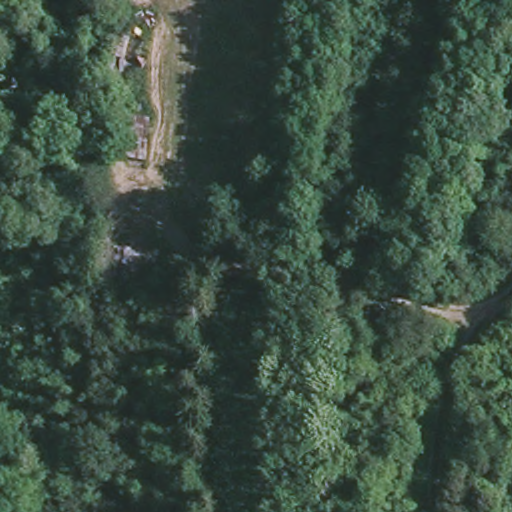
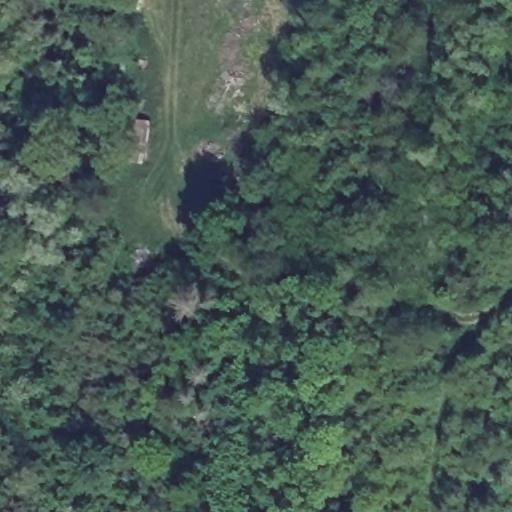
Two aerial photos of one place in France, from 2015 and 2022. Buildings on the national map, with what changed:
unchanged [(147,107),(107,107),(112,22),(152,31),(147,107)]
unchanged [(142,167),(100,159),(107,111),(147,120),(142,167)]

